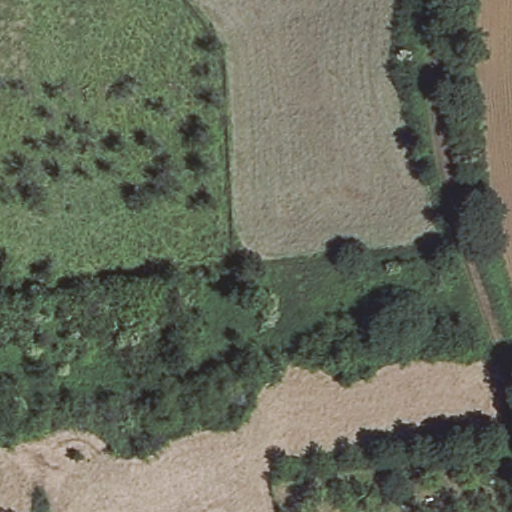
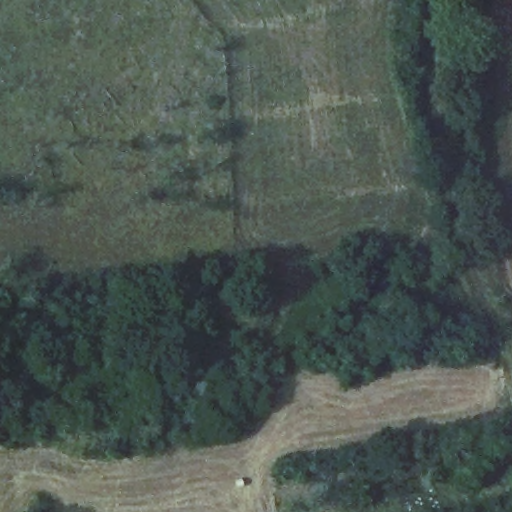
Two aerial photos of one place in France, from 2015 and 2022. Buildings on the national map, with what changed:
unchanged [(210,311),(211,338),(195,337),(195,313),(210,311)]

